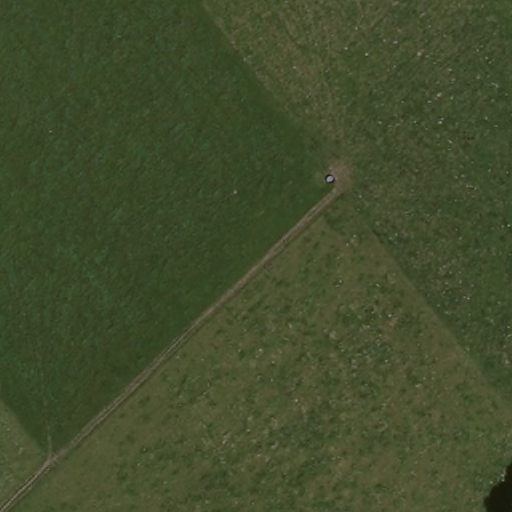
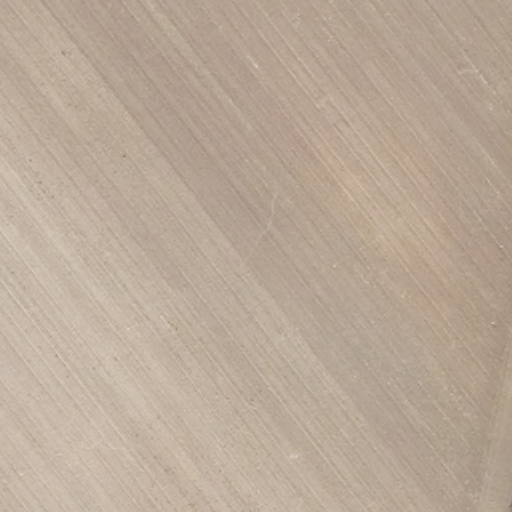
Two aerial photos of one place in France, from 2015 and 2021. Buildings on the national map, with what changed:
[]

